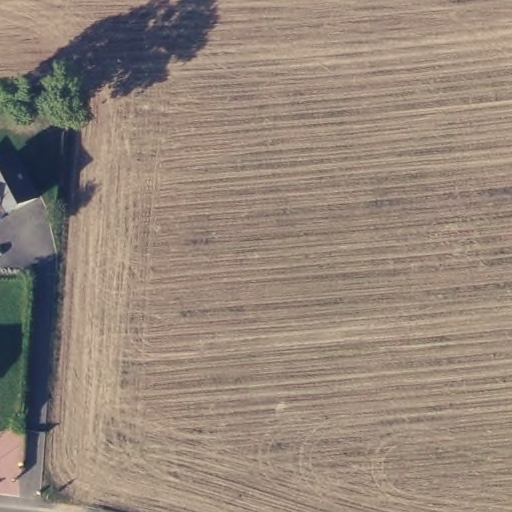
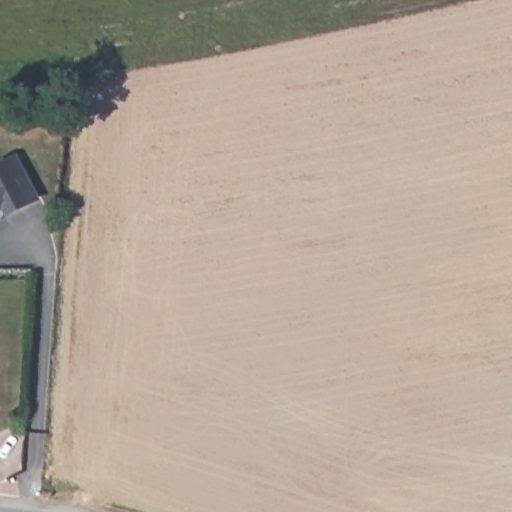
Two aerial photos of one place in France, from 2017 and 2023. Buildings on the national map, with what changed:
unchanged [(16,156),(37,198),(9,214),(7,212),(7,213),(6,214),(5,215),(4,216),(3,217),(2,218),(2,219),(0,220),(0,165),(16,156)]

